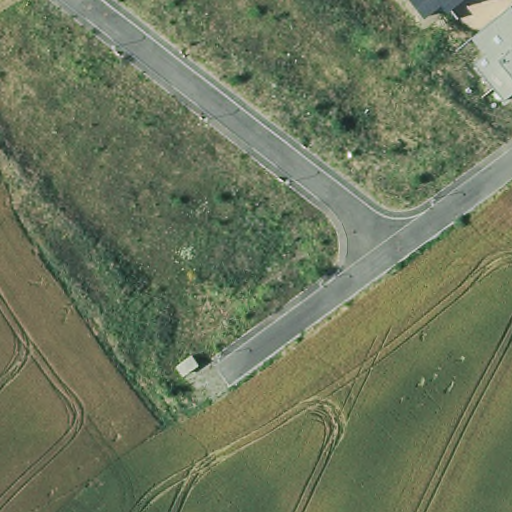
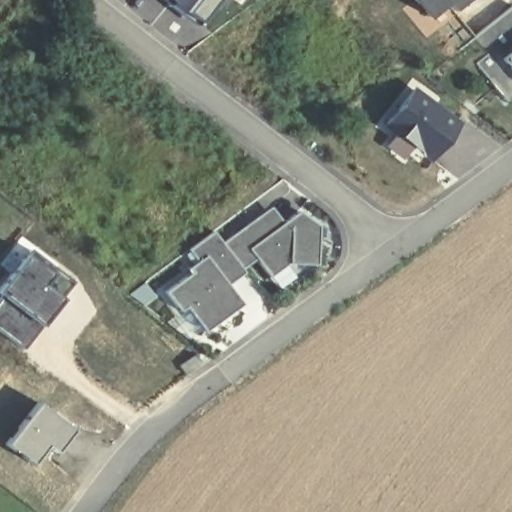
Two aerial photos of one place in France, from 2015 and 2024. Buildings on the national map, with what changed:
new [(186,12),(183,16),(167,3),(162,0),(216,0),(199,22),(186,12)]
unchanged [(444,4),(427,17),(413,0),(464,0),(450,11),(444,4)]
unchanged [(473,63),(484,54),(471,38),(512,5),(512,96),(506,101),(473,63)]
unchanged [(416,147),(386,123),(412,89),(453,120),(455,122),(448,131),(431,153),(429,157),(416,147)]
new [(192,271),(189,267),(198,260),(188,248),(213,230),(222,242),(262,211),(275,227),(298,209),(317,224),(315,263),(288,262),(270,275),(256,257),(242,268),(239,263),(222,276),(242,303),(205,331),(187,306),(181,310),(166,291),(192,271)]
new [(28,246),(73,280),(40,325),(0,296),(0,283),(28,246)]
new [(40,325),(22,349),(0,333),(0,296),(40,325)]
new [(80,430),(61,456),(51,448),(40,463),(7,439),(42,399),(80,430)]

